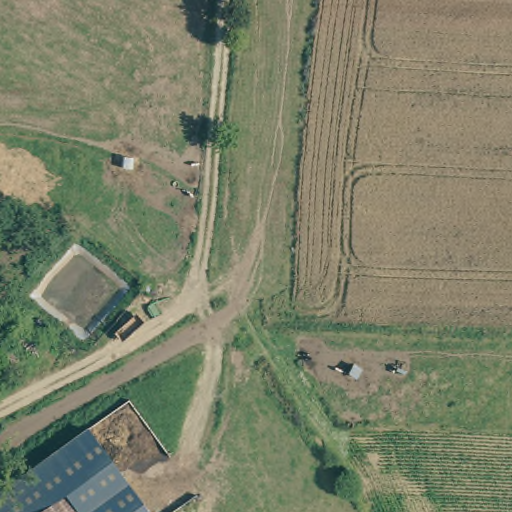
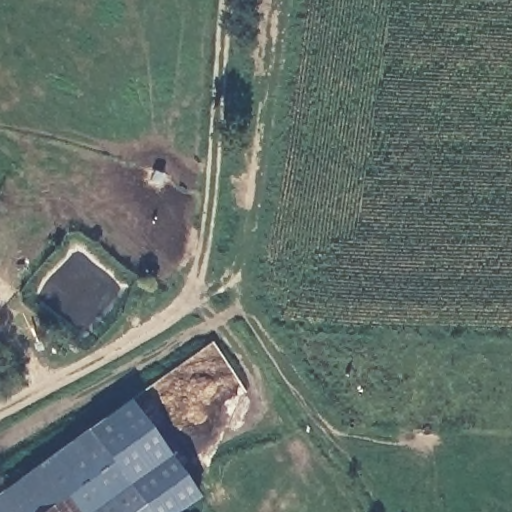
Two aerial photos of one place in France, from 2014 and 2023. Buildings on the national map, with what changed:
new [(148,512),(88,428),(128,399),(199,497),(178,512),(148,512)]
unchanged [(88,428),(148,512),(0,512),(0,491),(88,428)]

